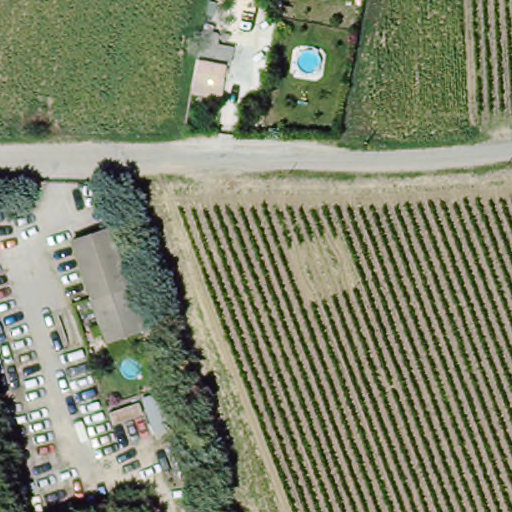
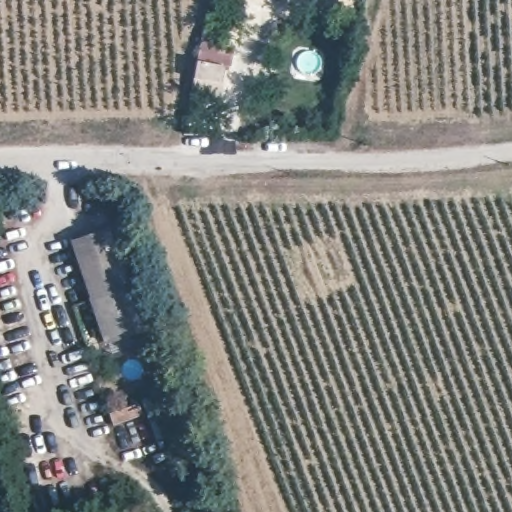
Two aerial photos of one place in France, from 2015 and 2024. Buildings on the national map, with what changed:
unchanged [(236,66),(229,65),(228,80),(196,75),(201,47),(238,53),(236,66)]
unchanged [(143,337),(108,348),(73,237),(107,227),(143,337)]
unchanged [(188,431),(156,441),(143,400),(175,390),(188,431)]

